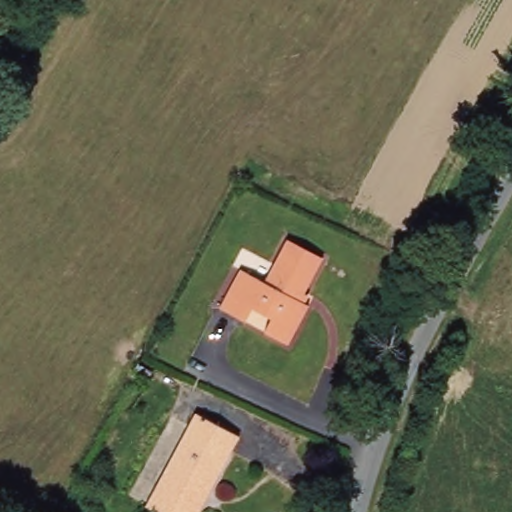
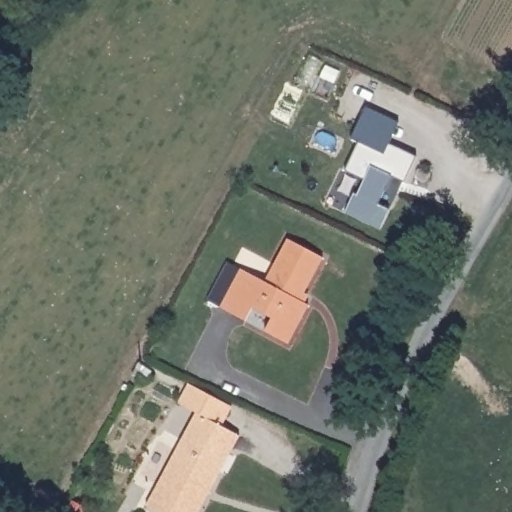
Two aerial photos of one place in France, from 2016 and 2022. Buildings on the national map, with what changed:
new [(356,195),(359,196),(366,181),(347,173),(360,144),(353,140),(368,108),(401,124),(391,145),(419,158),(407,184),(393,178),(380,205),(391,210),(382,230),(347,214),(356,195)]
unchanged [(239,266),(260,280),(286,240),(323,264),(299,301),(308,306),(296,325),(292,322),(279,341),(258,328),(266,315),(246,302),(238,315),(217,301),(239,266)]
unchanged [(189,415),(236,440),(205,497),(201,495),(193,512),(147,512),(139,508),(189,415)]

